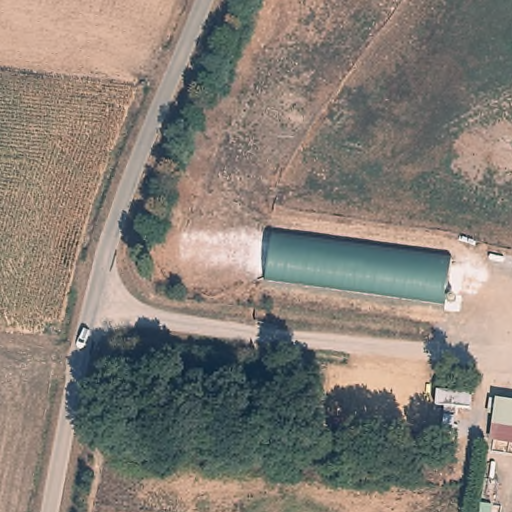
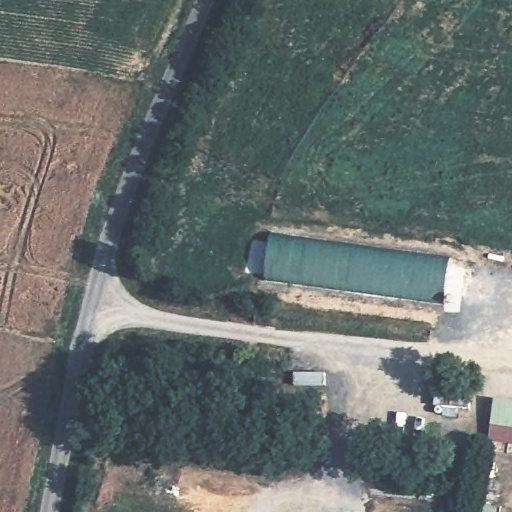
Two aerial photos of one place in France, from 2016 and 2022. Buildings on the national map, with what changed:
unchanged [(263,279),(269,232),(451,256),(444,303),(263,279)]
unchanged [(495,400),(512,403),(512,444),(489,441),(495,400)]

